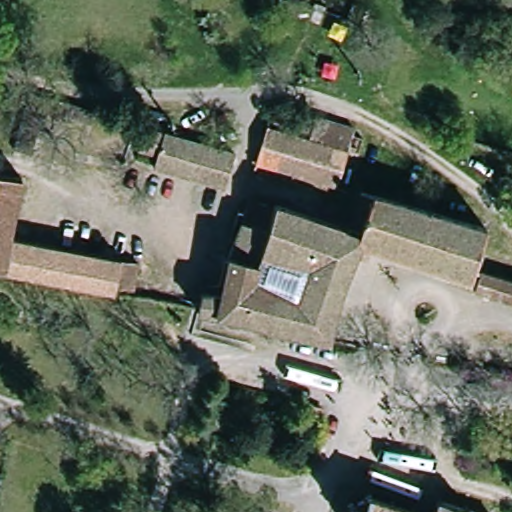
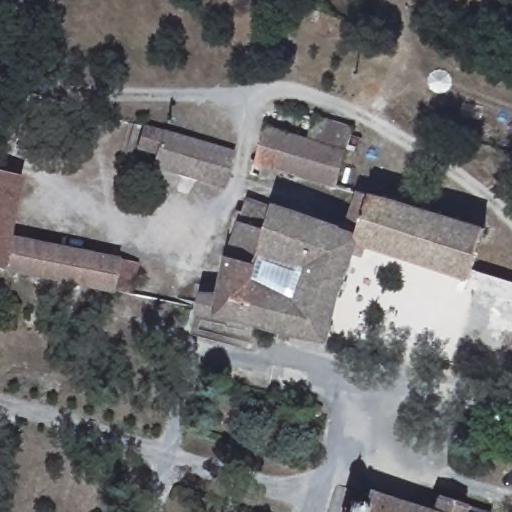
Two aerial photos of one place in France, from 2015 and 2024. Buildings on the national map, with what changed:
unchanged [(90,97),(83,114),(40,101),(27,138),(12,133),(29,77),(35,79),(45,82),(90,97)]
unchanged [(357,130),(338,185),(256,158),(268,126),(308,140),(317,116),(357,130)]
unchanged [(148,130),(235,156),(225,191),(159,170),(162,160),(141,154),(148,130)]
unchanged [(135,261),(127,297),(0,270),(0,171),(2,172),(20,175),(8,236),(135,261)]
unchanged [(359,247),(331,346),(220,319),(202,314),(205,298),(197,297),(200,283),(225,290),(229,279),(228,266),(235,242),(227,239),(235,214),(247,217),(252,204),(323,225),(325,219),(356,230),(365,198),(442,222),(490,237),(480,276),(478,282),(468,280),(359,247)]
unchanged [(478,282),(480,276),(512,285),(512,308),(465,293),(468,280),(478,282)]
unchanged [(349,506),(362,510),(365,492),(424,512),(347,512),(349,506)]
unchanged [(435,497),(468,508),(467,512),(426,512),(435,497)]

